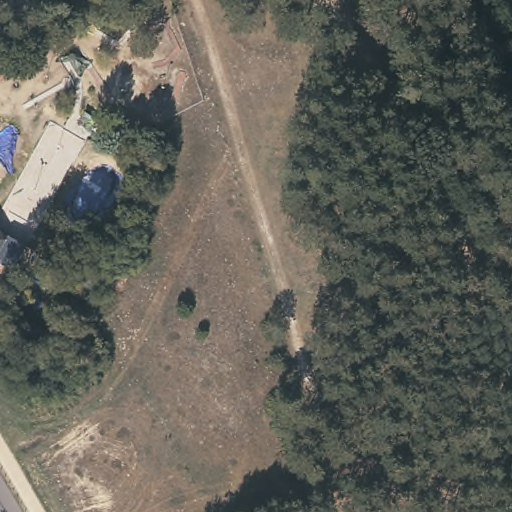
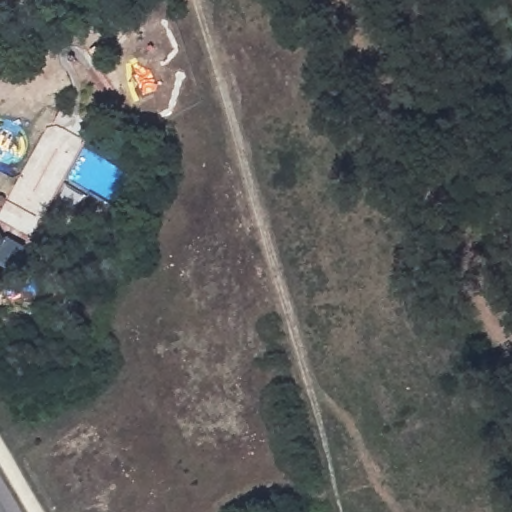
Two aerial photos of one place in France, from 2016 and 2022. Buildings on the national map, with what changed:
unchanged [(7,266),(0,262),(0,236),(18,245),(7,266)]

